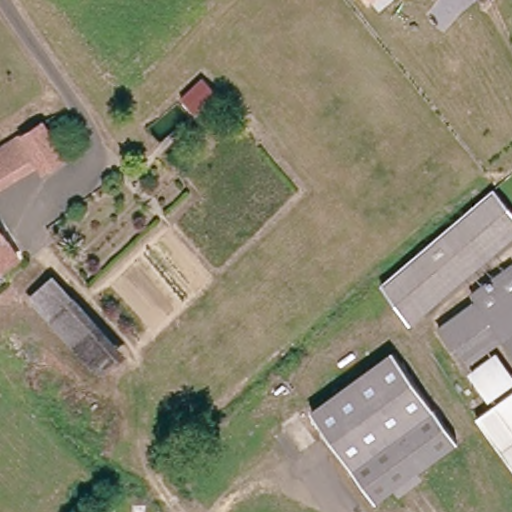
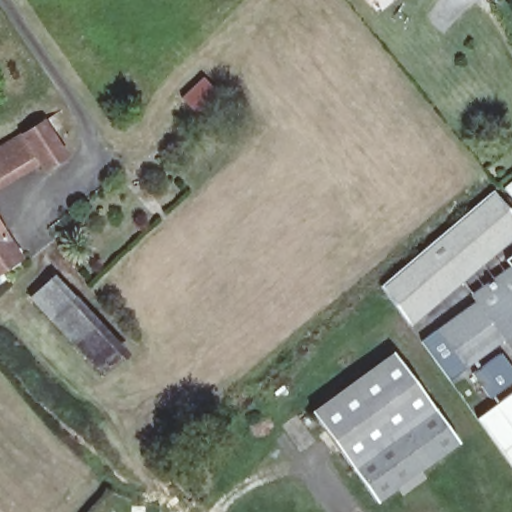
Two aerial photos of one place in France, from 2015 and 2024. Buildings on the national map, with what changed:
unchanged [(363,0),(377,0),(368,6),(363,0)]
unchanged [(196,113),(181,97),(202,77),(217,92),(196,113)]
unchanged [(44,121),(66,156),(44,170),(39,162),(22,135),(44,121)]
unchanged [(0,185),(0,148),(22,135),(39,162),(0,185)]
unchanged [(411,328),(408,330),(380,291),(492,196),(512,219),(512,242),(411,328)]
unchanged [(5,242),(16,260),(0,270),(0,230),(7,241),(5,242)]
unchanged [(466,371),(437,333),(475,305),(470,299),(510,270),(512,272),(512,336),(503,343),(466,371)]
unchanged [(129,355),(102,379),(27,297),(54,273),(75,295),(129,355)]
unchanged [(503,343),(512,336),(512,355),(503,343)]
unchanged [(457,441),(376,500),(312,410),(392,352),(457,441)]
unchanged [(512,385),(512,387),(490,403),(471,376),(494,360),(512,385)]
unchanged [(477,422),(512,396),(512,471),(477,422)]

